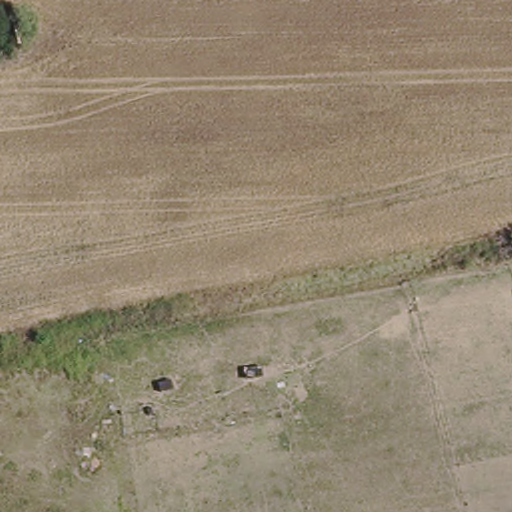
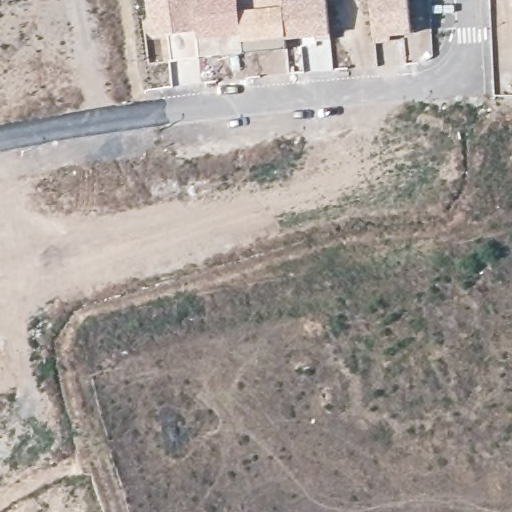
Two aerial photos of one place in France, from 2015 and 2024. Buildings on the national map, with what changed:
new [(245,54),(200,58),(196,34),(168,36),(149,38),(145,0),(239,0),(245,54)]
new [(283,0),(286,42),(273,44),(273,50),(245,54),(239,0),(283,0)]
new [(283,0),(327,0),(331,38),(300,40),(286,42),(283,0)]
new [(434,58),(410,62),(408,36),(375,43),(370,0),(410,0),(414,33),(431,30),(434,58)]

